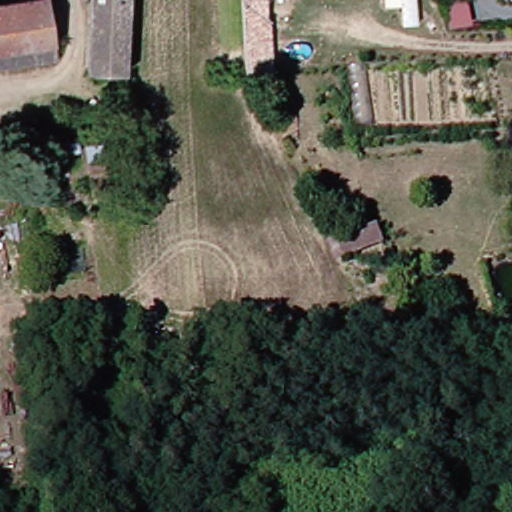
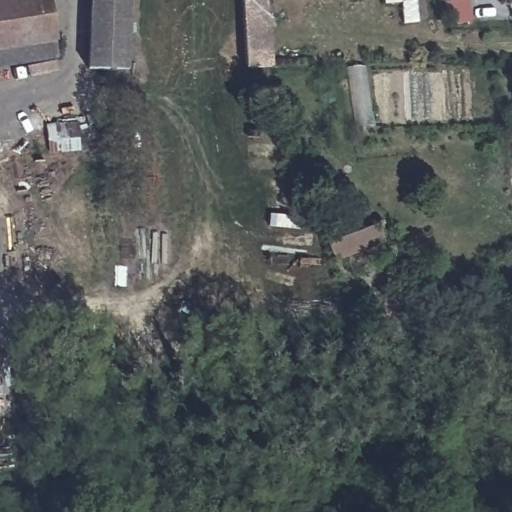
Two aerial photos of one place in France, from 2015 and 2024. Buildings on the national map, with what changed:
unchanged [(60,27),(64,46),(1,60),(0,60),(0,0),(53,0),(60,27)]
unchanged [(94,65),(96,0),(138,0),(136,67),(94,65)]
unchanged [(267,16),(271,18),(274,70),(247,68),(242,0),(266,0),(267,16)]

